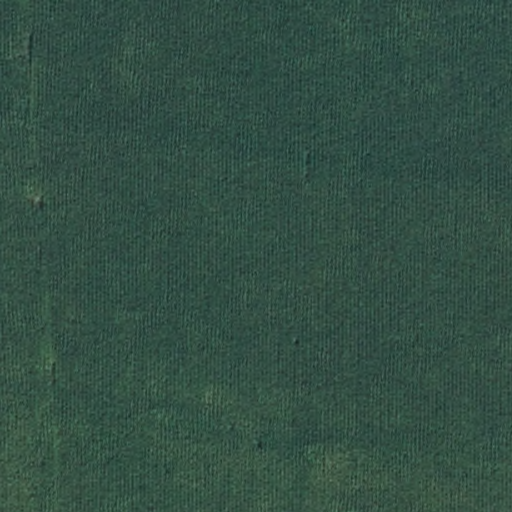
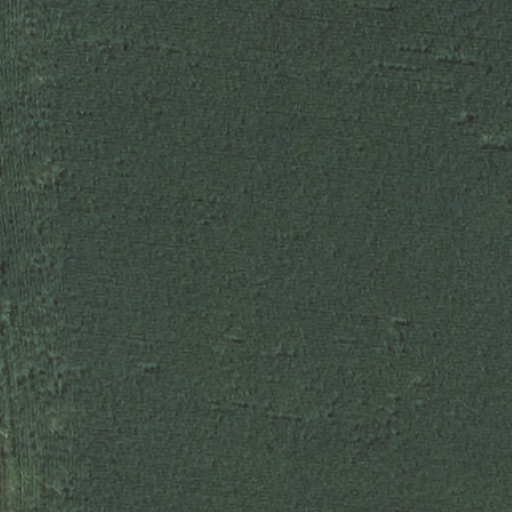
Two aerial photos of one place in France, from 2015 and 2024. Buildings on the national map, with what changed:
[]

